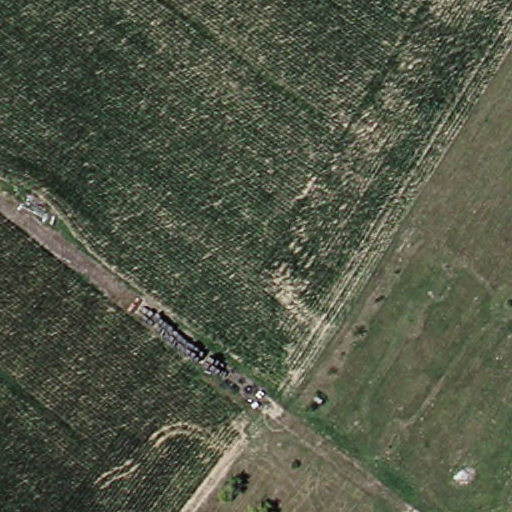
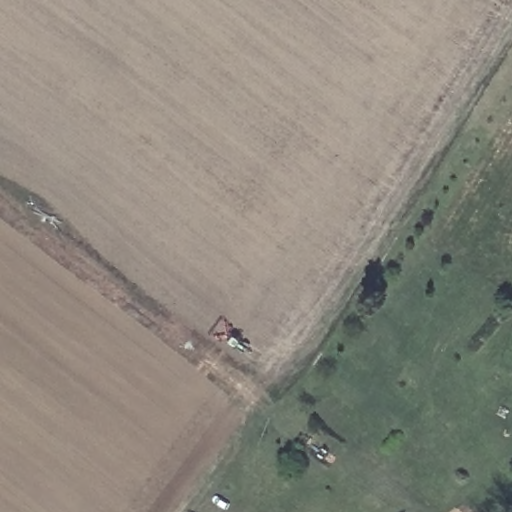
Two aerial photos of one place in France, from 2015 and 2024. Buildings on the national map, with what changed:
[]

